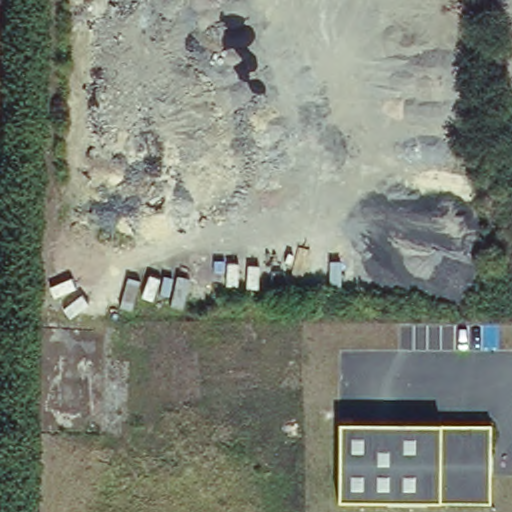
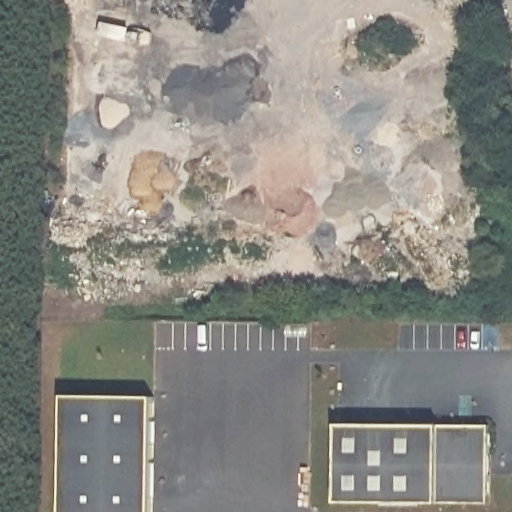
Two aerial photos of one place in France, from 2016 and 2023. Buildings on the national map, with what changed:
new [(163,512),(78,512),(78,392),(166,394),(163,512)]
unchanged [(494,505),(342,503),(342,424),(496,426),(495,456),(495,476),(494,505)]

